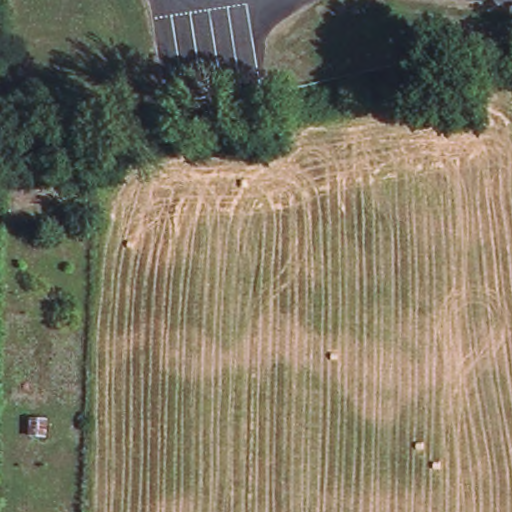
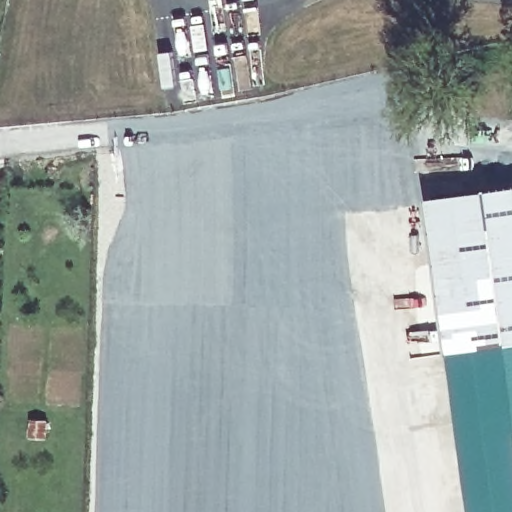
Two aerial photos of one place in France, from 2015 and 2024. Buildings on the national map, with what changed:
new [(512,343),(508,344),(500,280),(487,190),(512,186),(512,343)]
new [(487,190),(500,280),(508,344),(449,353),(436,269),(427,198),(487,190)]
new [(512,378),(508,344),(512,343),(512,378)]
new [(512,378),(512,512),(472,512),(467,471),(449,353),(508,344),(512,378)]
unchanged [(46,438),(30,437),(31,421),(47,422),(46,438)]

